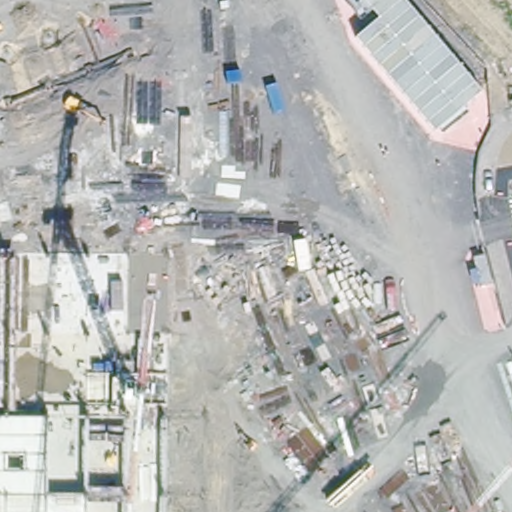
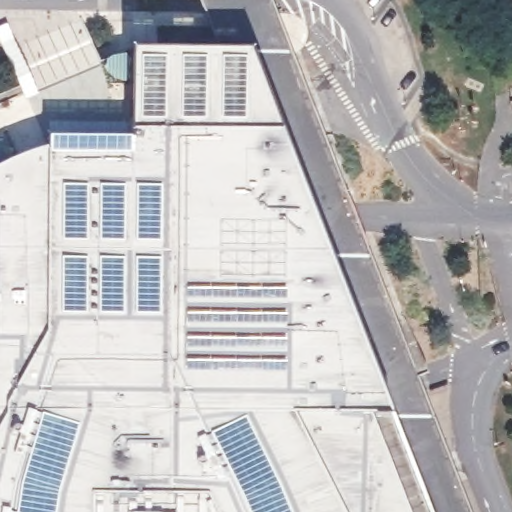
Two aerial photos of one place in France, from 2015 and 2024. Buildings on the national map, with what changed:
new [(292,53),(220,52),(217,43),(199,0),(271,0),(292,53)]
new [(18,38),(82,15),(104,55),(127,42),(217,43),(220,52),(292,53),(423,386),(472,512),(166,512),(169,254),(0,253),(0,104),(35,89),(18,38)]
demolished [(252,185),(337,178),(342,226),(257,233),(252,185)]
demolished [(364,253),(362,229),(405,225),(410,287),(362,291),(358,253),(364,253)]
unchanged [(166,512),(0,512),(0,253),(169,254),(166,512)]

